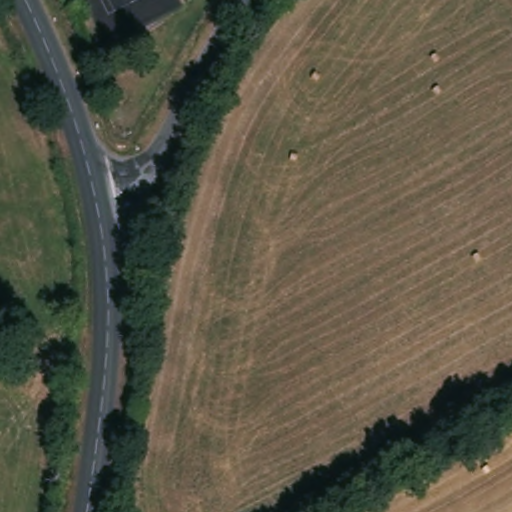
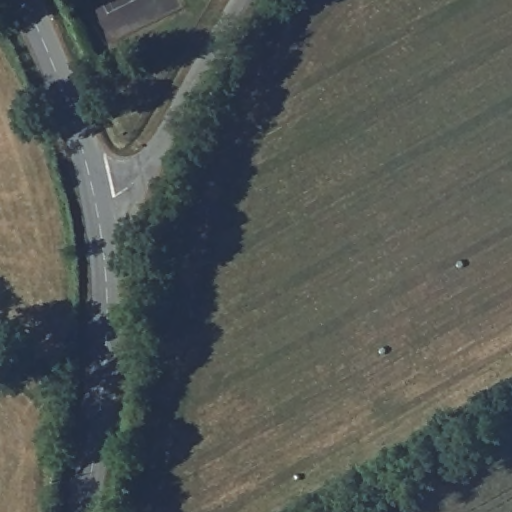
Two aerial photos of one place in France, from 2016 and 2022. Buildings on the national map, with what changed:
[]

